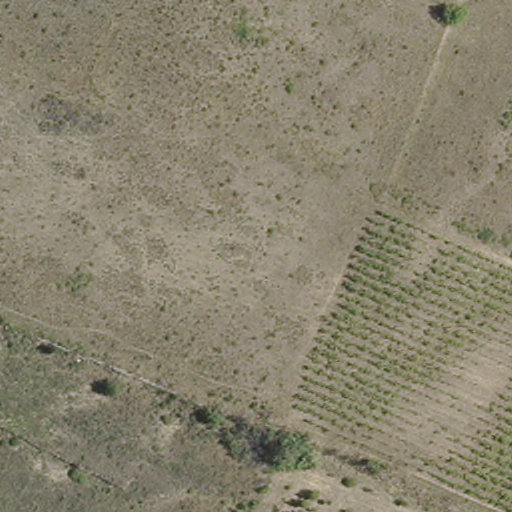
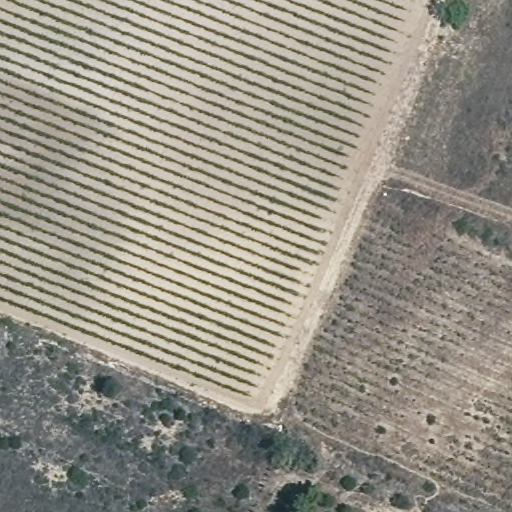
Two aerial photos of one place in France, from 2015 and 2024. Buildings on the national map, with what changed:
[]

